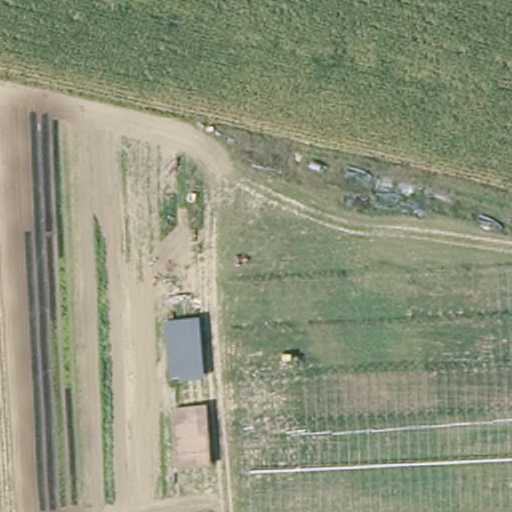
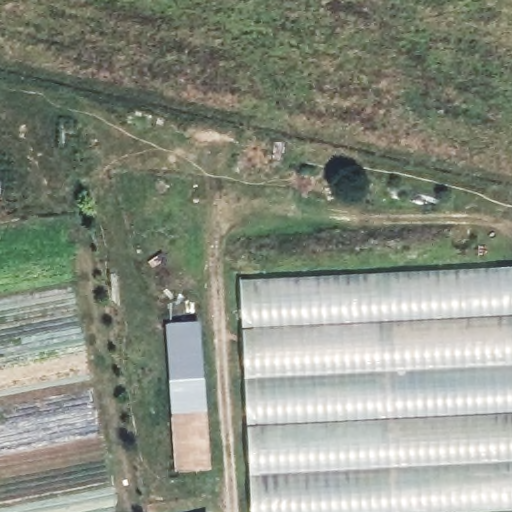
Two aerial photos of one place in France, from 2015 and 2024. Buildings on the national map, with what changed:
new [(512,510),(478,512),(250,512),(239,279),(512,266),(512,510)]
unchanged [(175,471),(170,411),(169,385),(164,324),(198,321),(204,382),(204,408),(210,469),(175,471)]
demolished [(512,467),(512,502),(472,508),(466,474),(512,467)]

